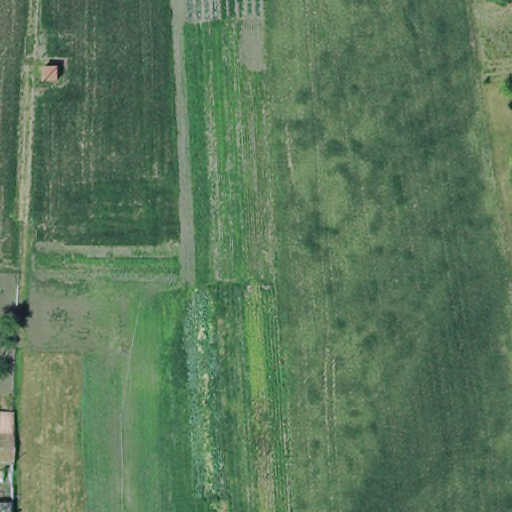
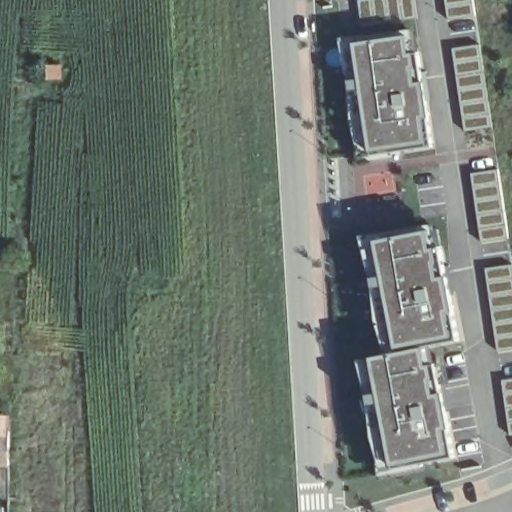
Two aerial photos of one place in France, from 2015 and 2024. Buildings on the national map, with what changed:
new [(415,0),(417,17),(358,27),(355,2),(364,0),(415,0)]
new [(446,21),(443,0),(471,0),(473,17),(446,21)]
new [(407,31),(411,52),(421,51),(437,150),(353,163),(335,40),(407,31)]
new [(488,129),(461,132),(450,49),(476,46),(488,129)]
unchanged [(48,67),(61,67),(61,80),(47,80),(48,67)]
new [(505,240),(478,245),(468,174),(495,170),(505,240)]
new [(380,359),(359,239),(440,225),(461,345),(422,352),(380,359)]
new [(512,351),(495,353),(484,270),(511,267),(512,274),(512,351)]
new [(421,352),(425,367),(436,366),(455,461),(372,478),(353,363),(421,352)]
new [(502,382),(512,381),(512,436),(508,437),(502,382)]
unchanged [(1,416),(3,467),(0,468),(0,416),(1,416)]

